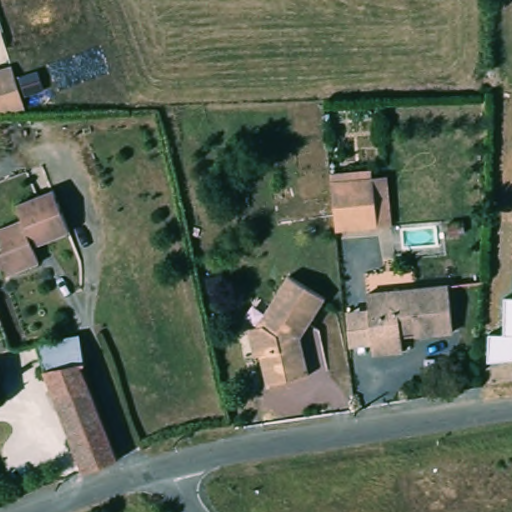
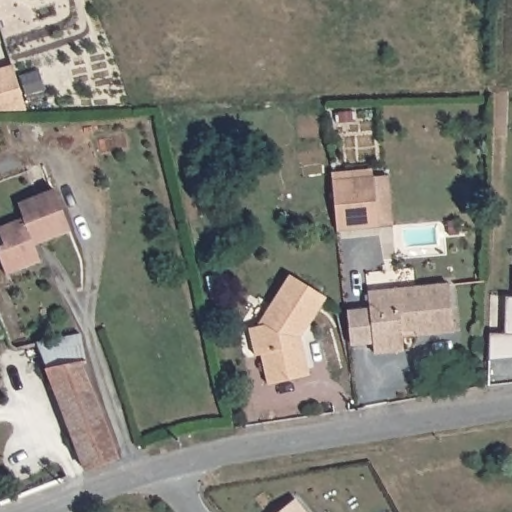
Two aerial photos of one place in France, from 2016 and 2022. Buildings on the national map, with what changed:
unchanged [(0,114),(0,70),(8,67),(22,113),(0,114)]
unchanged [(380,171),(386,220),(345,225),(342,200),(339,175),(380,171)]
unchanged [(3,271),(0,265),(0,243),(0,224),(19,216),(13,201),(50,186),(67,228),(44,237),(31,242),(38,257),(3,271)]
unchanged [(299,336),(308,374),(267,384),(260,353),(254,355),(248,328),(256,327),(286,276),(316,293),(323,297),(318,306),(299,336)]
unchanged [(444,285),(449,331),(422,334),(422,329),(396,332),(399,351),(369,355),(362,294),(444,285)]
unchanged [(488,362),(490,332),(505,333),(507,297),(512,297),(512,360),(488,362)]
unchanged [(78,335),(84,358),(84,364),(80,365),(118,460),(86,472),(35,344),(78,335)]
unchanged [(0,404),(0,378),(6,403),(0,404)]
new [(296,499),(306,512),(279,512),(296,499)]

